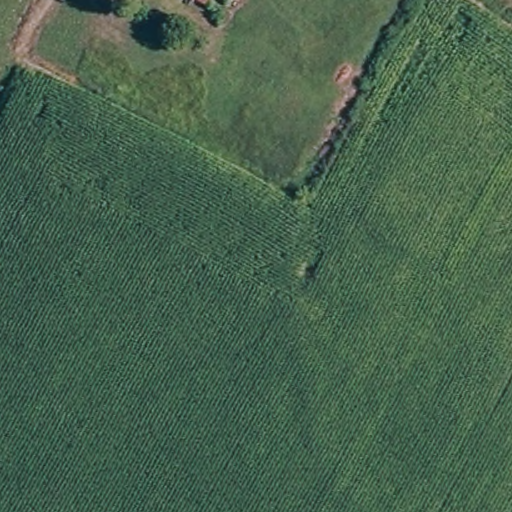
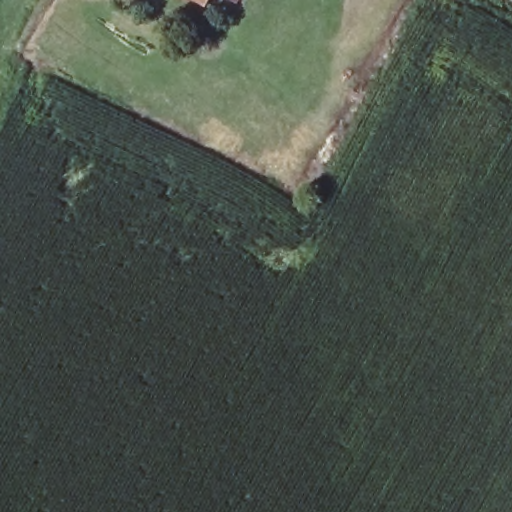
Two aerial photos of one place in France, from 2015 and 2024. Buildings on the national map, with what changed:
unchanged [(204,6),(192,0),(207,0),(204,6)]
unchanged [(237,2),(234,0),(239,0),(237,2)]

